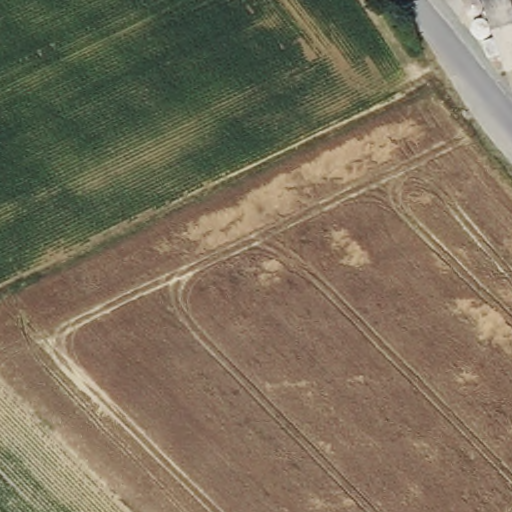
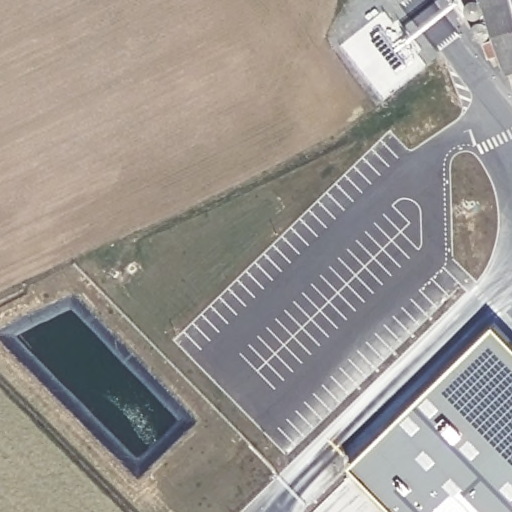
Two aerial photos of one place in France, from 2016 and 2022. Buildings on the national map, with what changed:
unchanged [(495,39),(476,42),(466,3),(472,0),(512,0),(512,71),(506,73),(495,39)]
new [(512,343),(512,512),(395,512),(348,464),(492,323),(512,343)]

